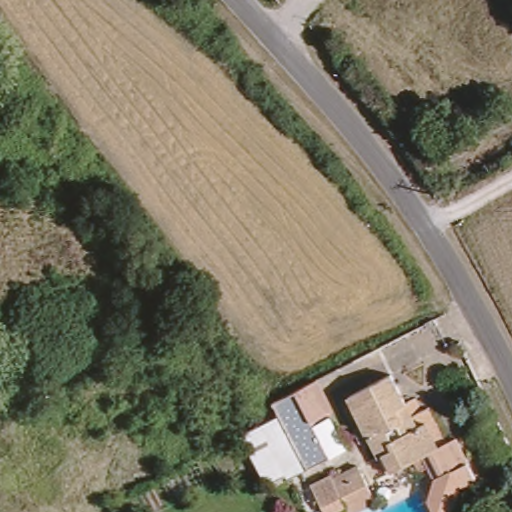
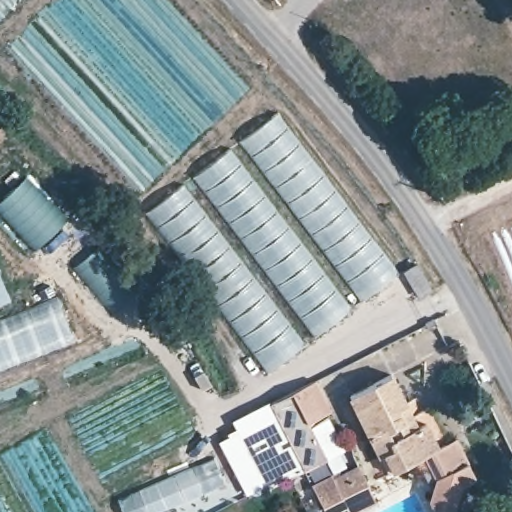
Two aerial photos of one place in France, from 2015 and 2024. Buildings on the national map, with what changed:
new [(278,114),(398,274),(362,302),(289,207),(240,142),(278,114)]
new [(223,162),(221,160),(232,151),(352,309),(315,337),(259,267),(198,183),(223,162)]
new [(68,219),(36,251),(0,213),(0,201),(26,175),(68,219)]
new [(144,212),(183,184),(305,342),(268,371),(144,212)]
new [(0,305),(0,273),(11,301),(0,305)]
new [(0,367),(0,316),(55,295),(73,338),(0,367)]
unchanged [(437,326),(428,331),(424,323),(434,318),(437,326)]
unchanged [(385,460),(380,462),(349,401),(390,380),(405,409),(417,432),(425,427),(437,452),(455,443),(475,482),(460,491),(454,512),(434,512),(430,505),(437,482),(425,460),(403,471),(393,476),(385,460)]
new [(218,442),(229,436),(227,432),(237,428),(232,420),(315,381),(318,386),(309,391),(284,403),(291,416),(273,427),(298,473),(281,482),(279,477),(245,495),(218,442)]
unchanged [(301,481),(273,427),(291,416),(284,403),(308,391),(329,381),(345,411),(324,422),(343,459),(301,481)]
new [(215,458),(226,484),(165,510),(166,512),(124,512),(119,498),(215,458)]
unchanged [(376,511),(374,512),(320,512),(311,496),(332,486),(333,488),(359,476),(376,511)]

